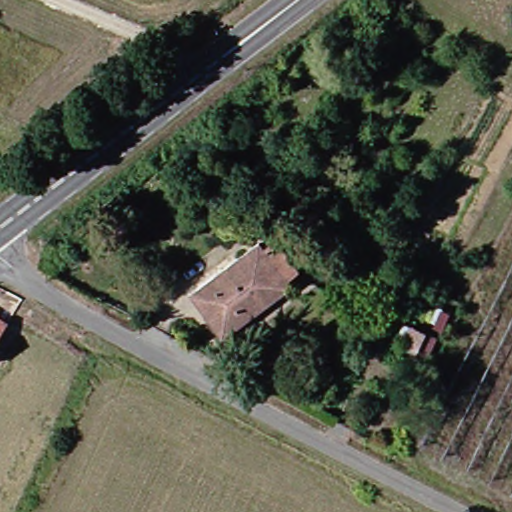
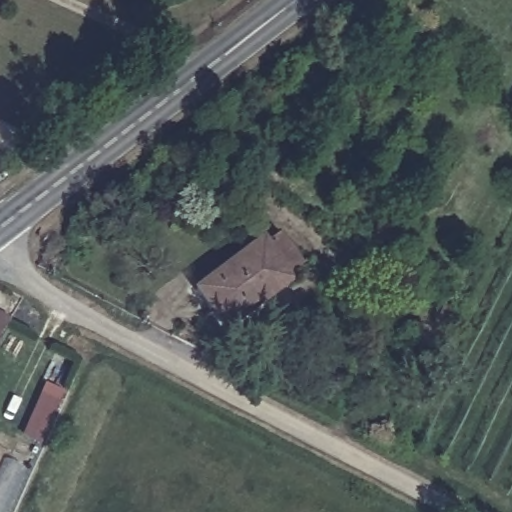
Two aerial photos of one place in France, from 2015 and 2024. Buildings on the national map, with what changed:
unchanged [(274,244),(298,278),(229,322),(222,312),(205,287),(253,257),(274,244)]
unchanged [(10,292),(23,299),(15,310),(4,305),(10,292)]
unchanged [(0,345),(0,309),(16,319),(0,345)]

